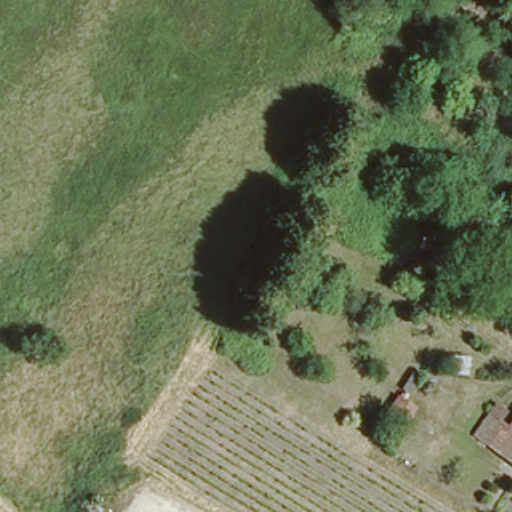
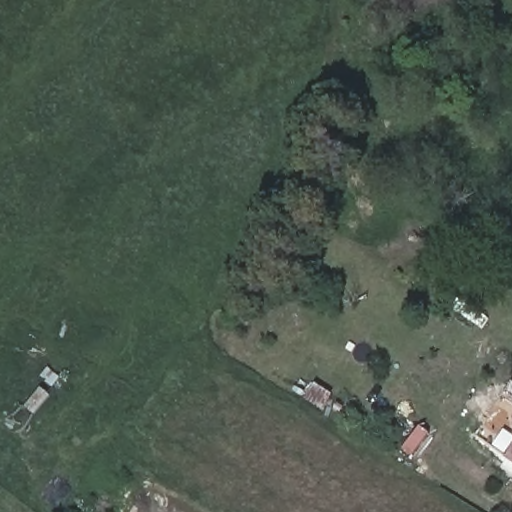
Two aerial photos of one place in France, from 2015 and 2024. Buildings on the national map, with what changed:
unchanged [(512,423),(512,461),(472,433),(490,407),(512,423)]

